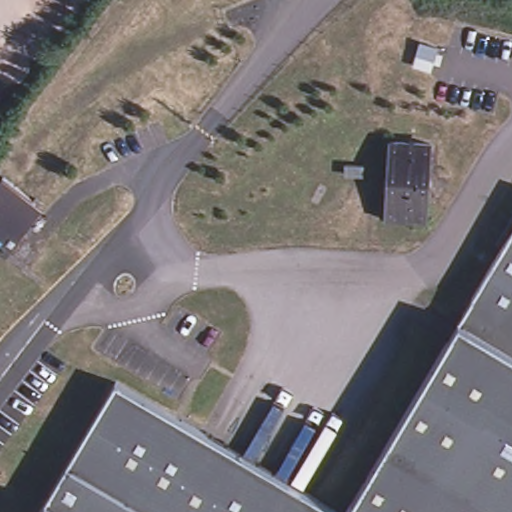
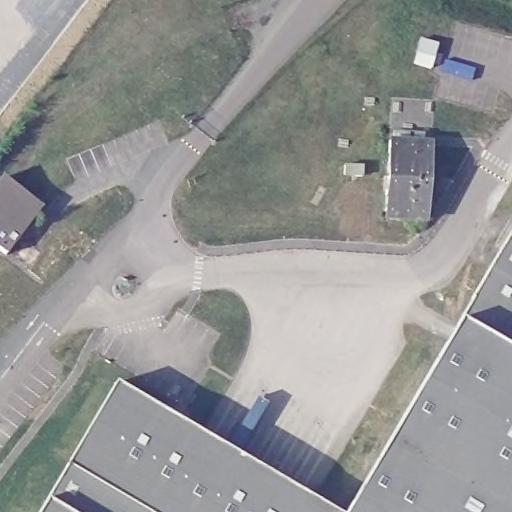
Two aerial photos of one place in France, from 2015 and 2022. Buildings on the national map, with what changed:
unchanged [(438,141),(435,220),(393,219),(396,140),(438,141)]
unchanged [(357,165),(375,165),(375,176),(356,175),(357,165)]
unchanged [(46,202),(9,252),(0,245),(0,179),(5,172),(46,202)]
unchanged [(512,236),(512,337),(467,309),(480,288),(480,287),(512,236)]
unchanged [(31,475),(47,484),(62,460),(122,363),(347,502),(467,309),(512,337),(512,512),(30,512),(15,503),(31,475)]

